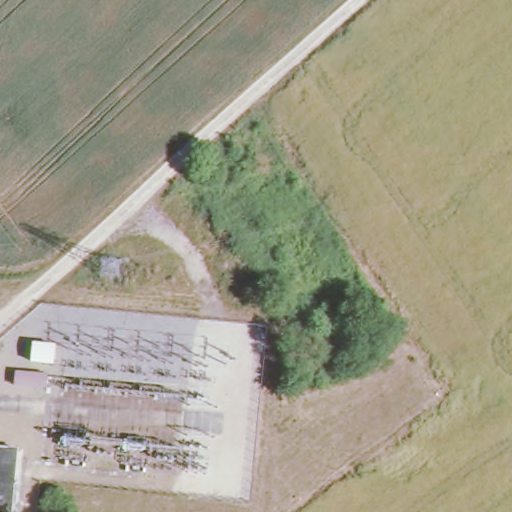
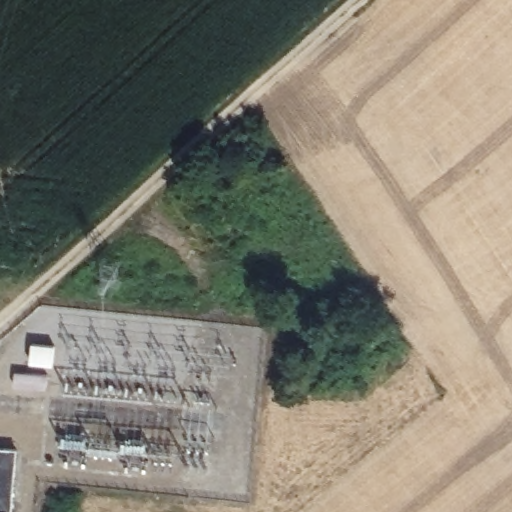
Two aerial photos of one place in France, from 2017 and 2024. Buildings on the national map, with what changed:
unchanged [(0,512),(0,448),(13,448),(7,512),(0,512)]

